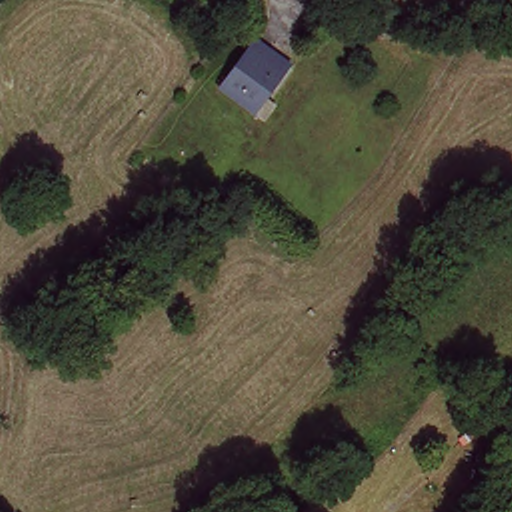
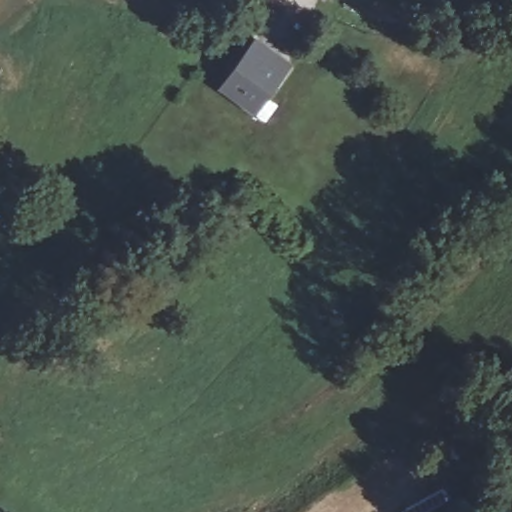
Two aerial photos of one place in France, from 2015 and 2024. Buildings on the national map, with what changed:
unchanged [(277,66),(247,110),(216,90),(247,46),(277,66)]

